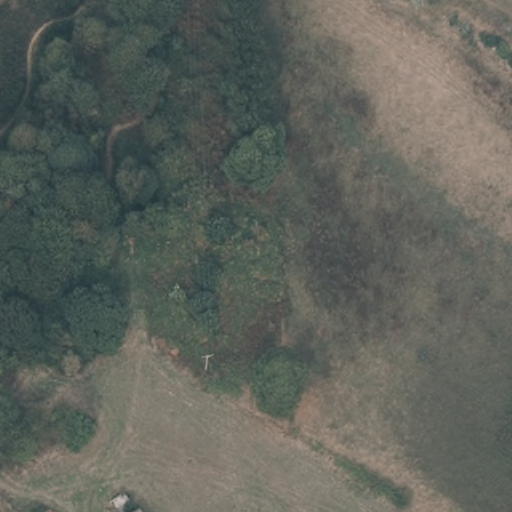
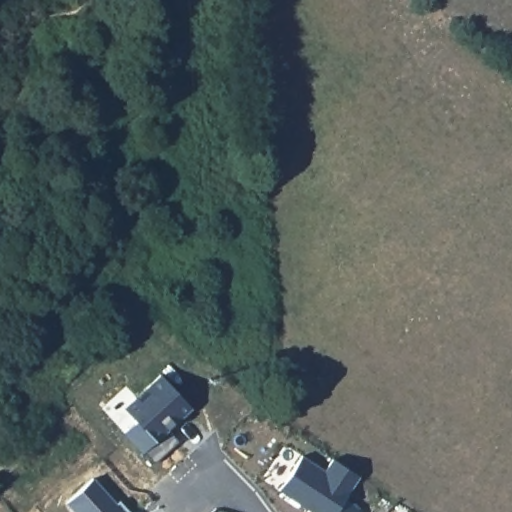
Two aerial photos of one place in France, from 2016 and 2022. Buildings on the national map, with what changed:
new [(134,420),(122,406),(159,373),(192,407),(176,421),(174,421),(166,427),(179,440),(154,462),(144,452),(141,453),(121,432),(134,420)]
new [(325,469),(332,458),(360,475),(345,497),(359,506),(355,512),(311,512),(277,490),(299,454),(325,469)]
new [(116,501),(117,500),(129,512),(74,512),(65,503),(92,476),(116,501)]

